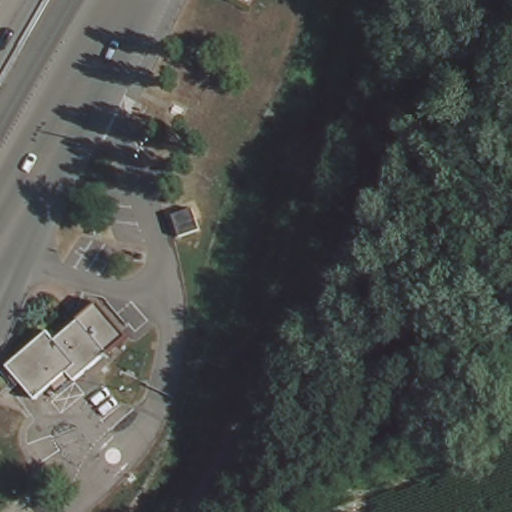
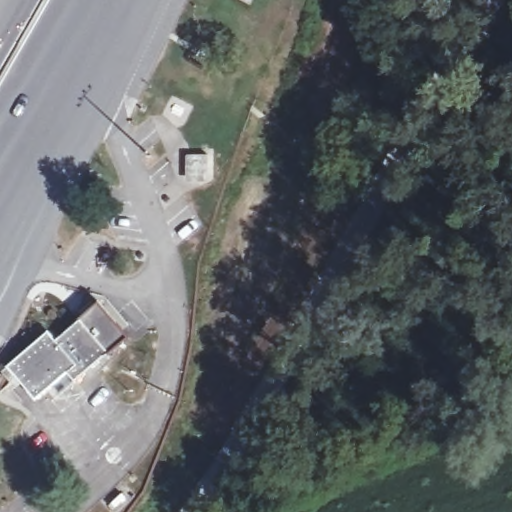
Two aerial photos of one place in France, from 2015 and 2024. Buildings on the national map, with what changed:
unchanged [(177,217),(175,212),(182,209),(185,215),(192,212),(199,230),(191,233),(192,237),(184,240),(182,236),(178,238),(170,219),(177,217)]
unchanged [(40,331),(47,341),(72,321),(75,324),(81,319),(105,348),(100,352),(102,354),(67,383),(61,374),(29,400),(0,364),(40,331)]

